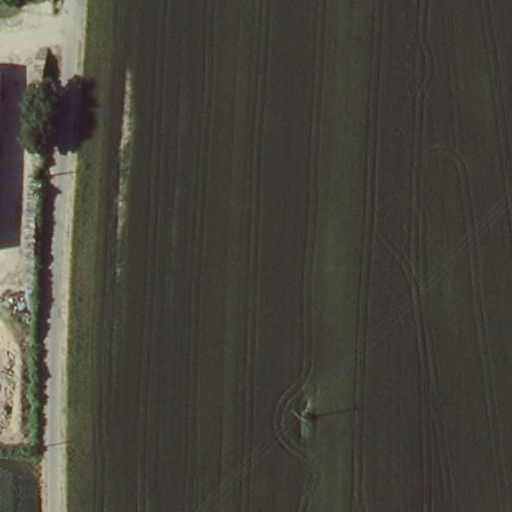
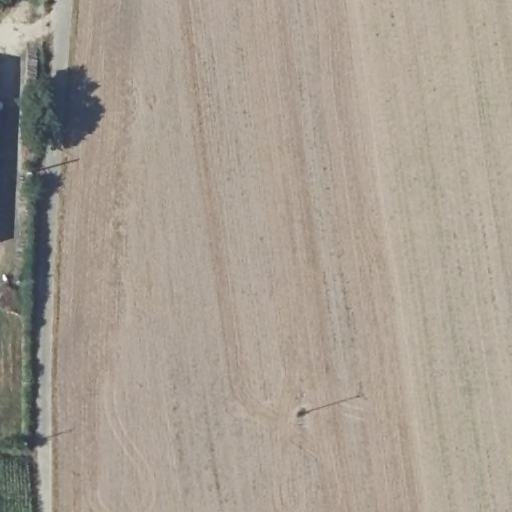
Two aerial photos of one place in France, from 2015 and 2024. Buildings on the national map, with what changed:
[]

